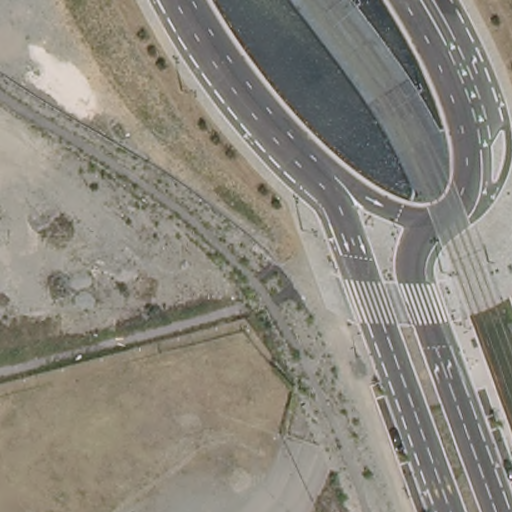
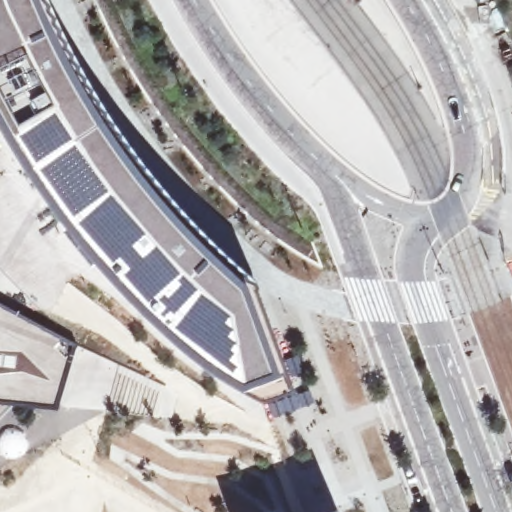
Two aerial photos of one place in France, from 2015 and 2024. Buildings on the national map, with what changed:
new [(45,12),(62,47),(82,84),(101,115),(115,136),(143,173),(176,213),(211,249),(251,285),(289,388),(260,399),(240,388),(225,380),(203,365),(182,350),(145,315),(125,295),(95,263),(66,227),(52,209),(32,181),(16,156),(0,129),(0,0),(40,0),(45,12)]
new [(55,407),(15,403),(0,417),(0,264),(75,343),(55,407)]
new [(340,512),(317,512),(337,505),(340,512)]

